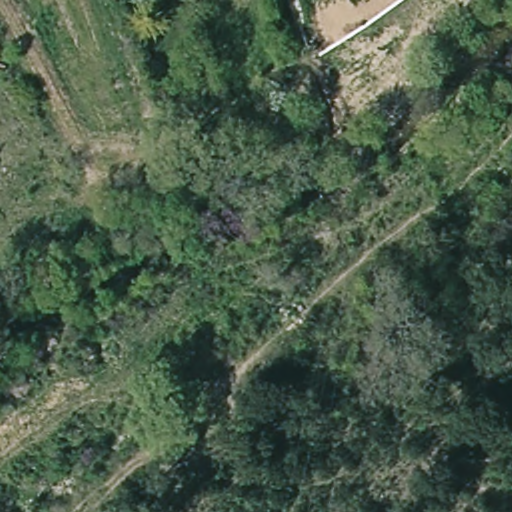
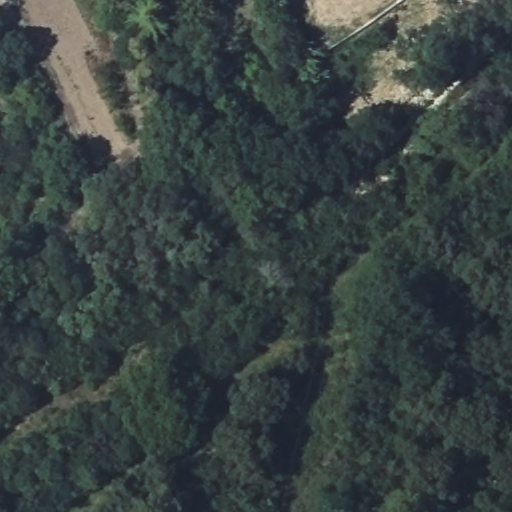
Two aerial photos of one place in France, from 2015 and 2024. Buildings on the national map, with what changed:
[]

